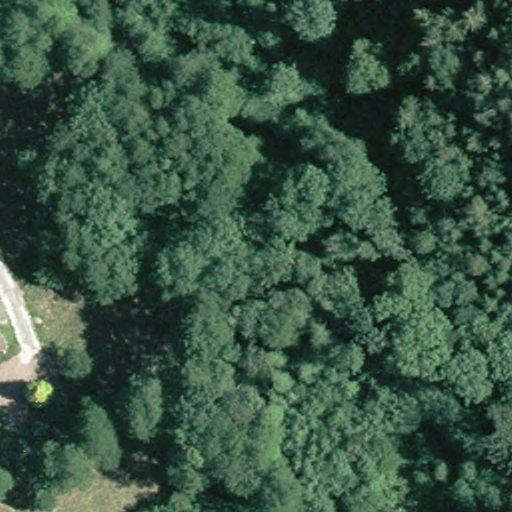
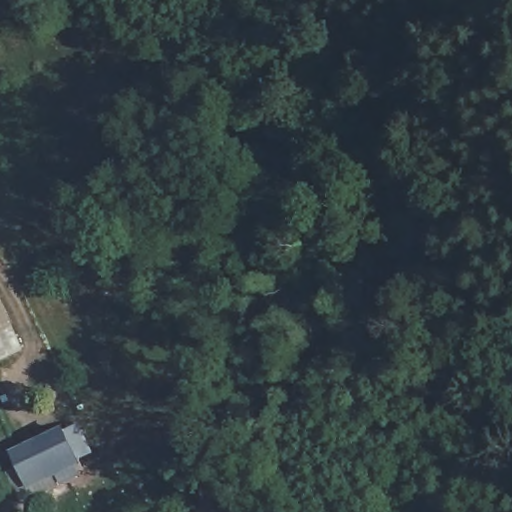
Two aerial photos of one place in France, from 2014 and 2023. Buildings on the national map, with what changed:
new [(24,341),(0,352),(0,293),(24,341)]
new [(57,483),(52,476),(29,485),(12,447),(63,422),(77,419),(92,456),(77,462),(80,473),(57,483)]

